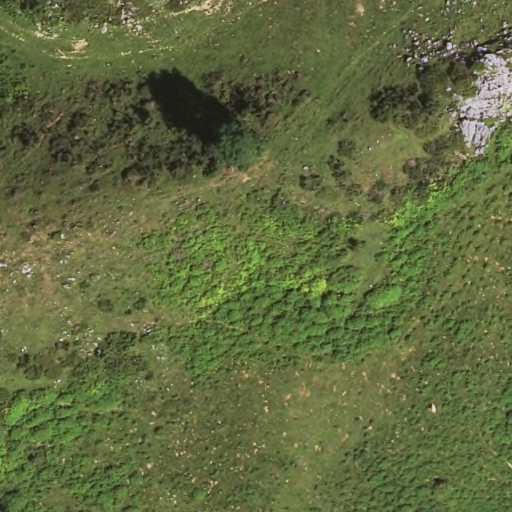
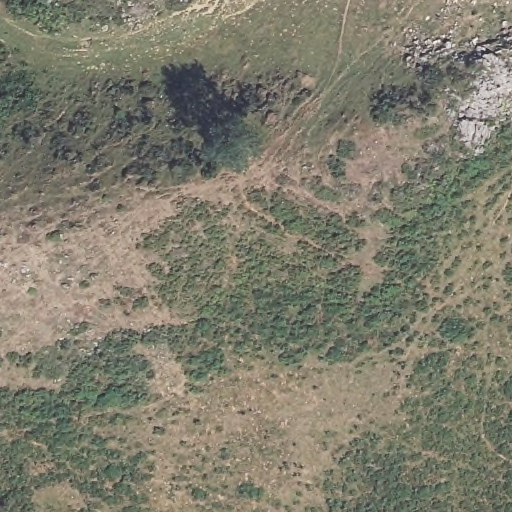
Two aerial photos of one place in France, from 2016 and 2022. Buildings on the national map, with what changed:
[]

